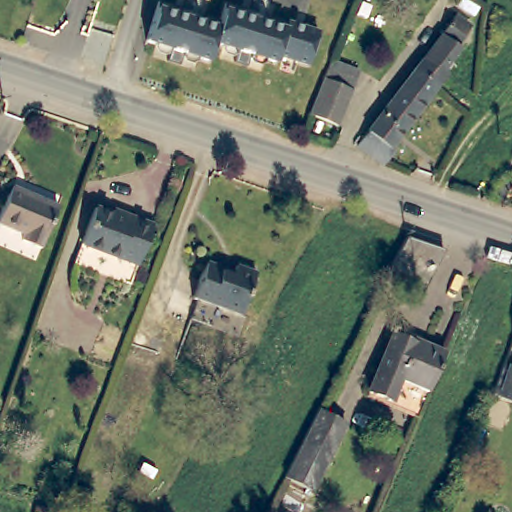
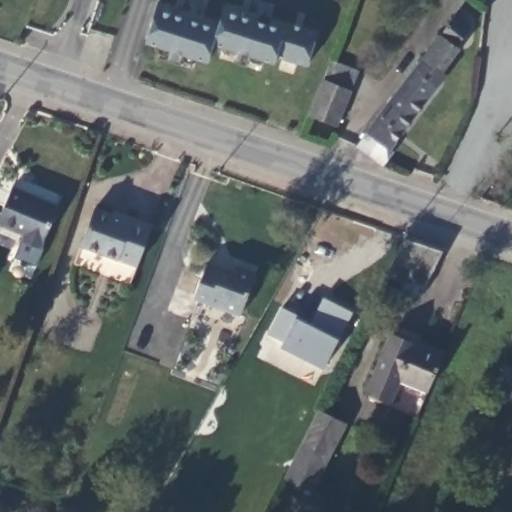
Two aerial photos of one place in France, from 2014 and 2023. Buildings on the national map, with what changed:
unchanged [(306,66),(275,56),(272,62),(248,54),(244,67),(232,62),(236,50),(212,42),(206,61),(181,52),(177,65),(165,61),(169,48),(144,40),(157,1),(175,7),(201,15),(218,21),(224,2),(242,9),(267,17),(316,33),(306,66)]
unchanged [(392,164),(364,144),(410,82),(422,67),(428,57),(462,12),(473,21),(470,27),(473,29),(462,44),(464,46),(447,70),(440,79),(444,83),(442,85),(432,99),(397,146),(402,149),(392,164)]
unchanged [(326,77),(333,57),(365,69),(358,89),(340,127),(312,117),(326,77)]
unchanged [(17,186),(62,205),(43,247),(26,240),(30,231),(1,219),(17,186)]
unchanged [(98,209),(132,223),(134,217),(154,227),(136,267),(83,244),(98,209)]
unchanged [(422,299),(410,293),(385,282),(410,232),(433,242),(447,249),(422,299)]
unchanged [(235,274),(239,265),(261,275),(241,317),(195,297),(210,262),(235,274)]
new [(338,339),(325,367),(280,346),(282,341),(268,333),(282,306),(298,316),(311,322),(322,296),(353,312),(338,339)]
unchanged [(432,382),(422,408),(369,387),(395,326),(422,336),(422,334),(447,345),(432,382)]
unchanged [(502,388),(511,365),(512,365),(512,392),(502,388)]
unchanged [(322,408),(352,421),(312,492),(287,479),(322,408)]

